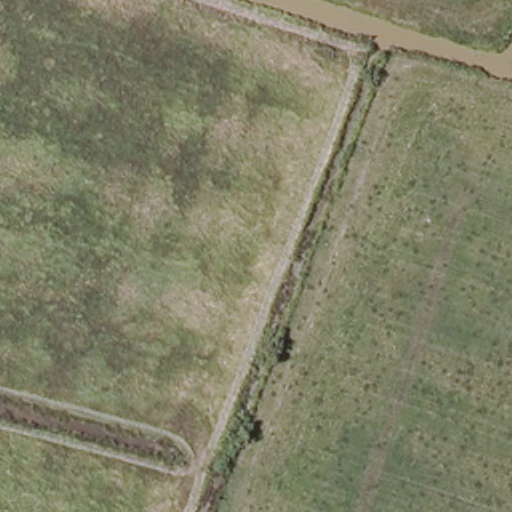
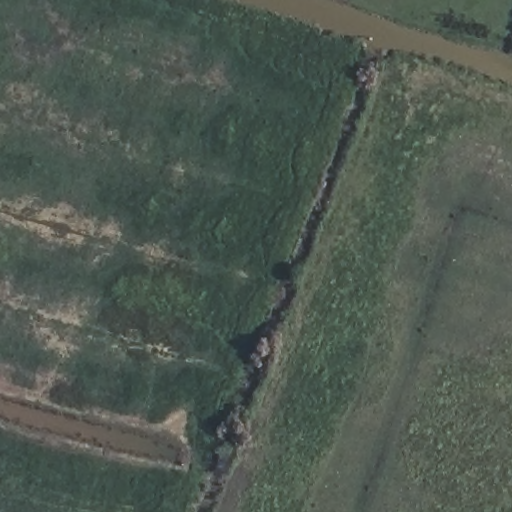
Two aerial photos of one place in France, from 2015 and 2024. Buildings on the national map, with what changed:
[]

